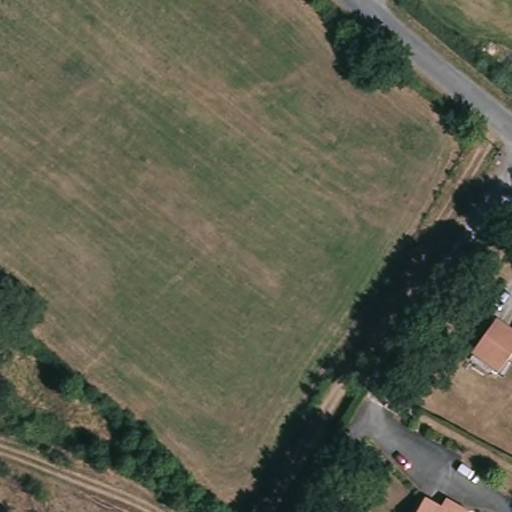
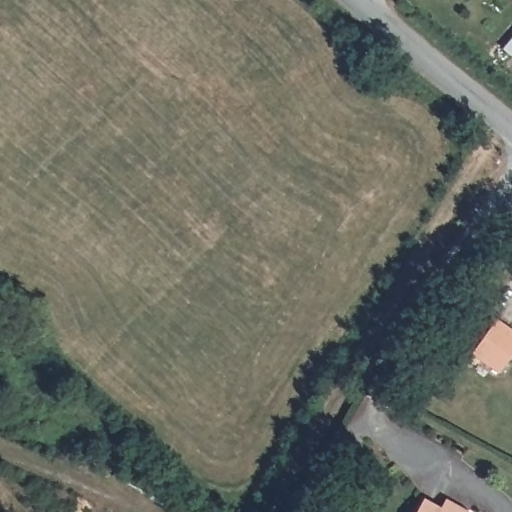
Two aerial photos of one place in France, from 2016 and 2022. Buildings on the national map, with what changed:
unchanged [(512,353),(498,372),(471,352),(496,320),(512,331),(512,353)]
unchanged [(446,502),(442,510),(445,512),(418,512),(430,492),(446,502)]

